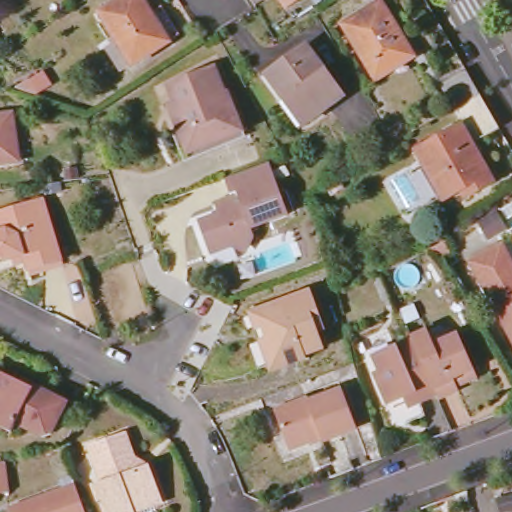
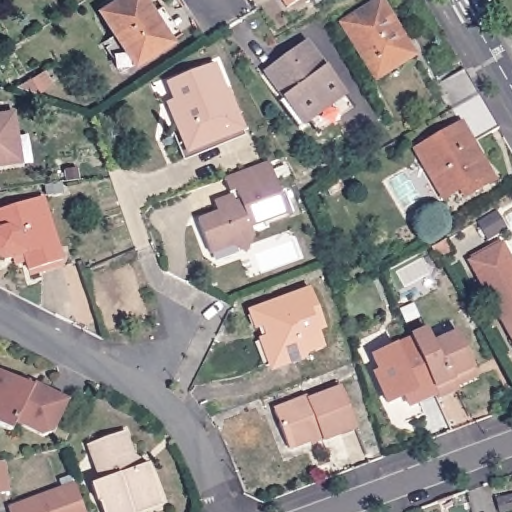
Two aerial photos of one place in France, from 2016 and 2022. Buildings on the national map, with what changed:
unchanged [(132,65),(100,13),(120,0),(140,0),(167,43),(132,65)]
unchanged [(282,0),(301,0),(288,9),(282,0)]
unchanged [(397,31),(391,35),(406,61),(375,78),(343,23),(379,2),(397,31)]
unchanged [(342,101),(303,126),(286,100),(282,102),(264,76),(303,48),(342,101)]
unchanged [(452,106),(447,109),(432,84),(464,64),(478,90),(452,106)]
unchanged [(172,114),(169,104),(177,102),(171,87),(187,81),(187,79),(215,67),(227,94),(230,93),(245,135),(199,151),(188,155),(182,136),(172,114)]
unchanged [(498,125),(467,143),(490,182),(468,194),(463,188),(445,197),(417,149),(460,122),(452,106),(478,90),(498,125)]
unchanged [(13,164),(0,166),(0,115),(13,113),(18,142),(22,163),(13,164)]
unchanged [(232,198),(226,181),(226,180),(250,172),(270,165),(289,216),(252,231),(255,240),(252,248),(239,252),(237,247),(211,256),(200,223),(223,215),(218,204),(232,198)]
unchanged [(12,259),(5,261),(2,251),(0,252),(0,211),(45,198),(63,262),(28,271),(27,262),(15,265),(12,259)]
unchanged [(487,294),(469,262),(500,245),(512,268),(512,338),(487,294)]
unchanged [(447,246),(454,258),(440,265),(433,253),(447,246)]
unchanged [(310,289),(324,327),(317,330),(322,346),(303,353),(305,357),(280,366),(270,362),(261,337),(270,334),(267,323),(254,328),(247,311),(310,289)]
unchanged [(452,385),(454,389),(432,399),(430,395),(406,340),(405,337),(423,330),(429,343),(452,333),(468,370),(472,378),(452,385)]
unchanged [(405,406),(400,396),(384,403),(372,373),(376,371),(370,356),(406,340),(430,395),(405,406)]
unchanged [(18,385),(30,391),(35,385),(67,401),(52,431),(43,435),(18,422),(14,429),(0,422),(0,371),(20,381),(18,385)]
unchanged [(309,395),(310,399),(345,386),(360,426),(325,439),(324,435),(292,448),(277,408),(309,395)]
unchanged [(125,435),(138,471),(148,467),(161,498),(156,506),(140,512),(104,512),(101,504),(97,505),(92,488),(108,482),(102,467),(95,469),(87,449),(125,435)]
unchanged [(8,491),(0,493),(0,463),(5,462),(8,491)]
unchanged [(57,479),(70,474),(75,484),(85,512),(10,512),(9,509),(61,489),(57,479)]

